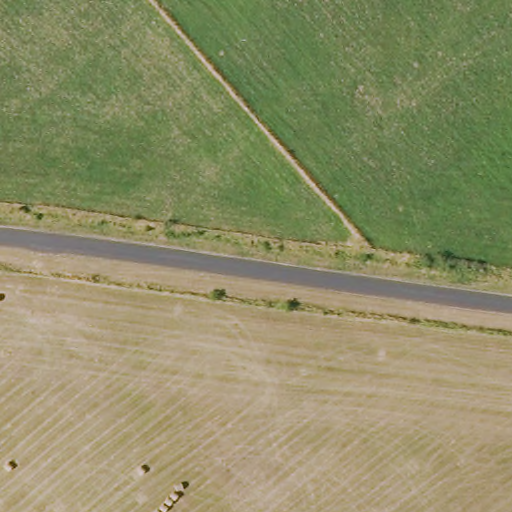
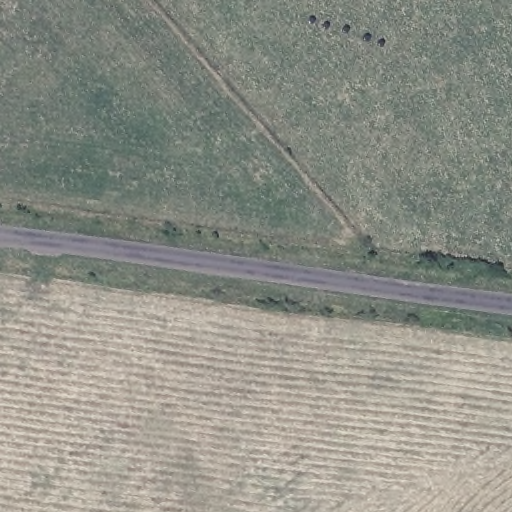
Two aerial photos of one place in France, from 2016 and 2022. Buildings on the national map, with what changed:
[]

